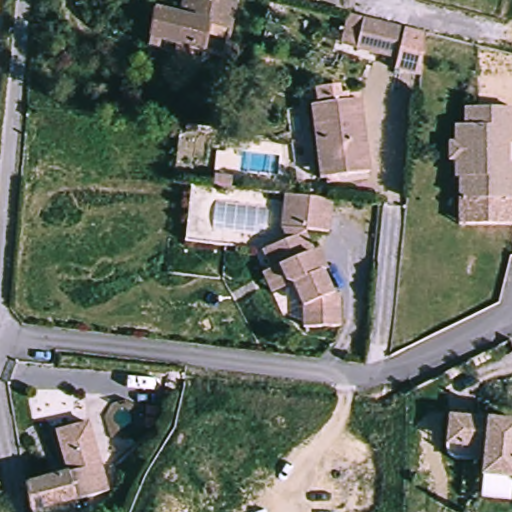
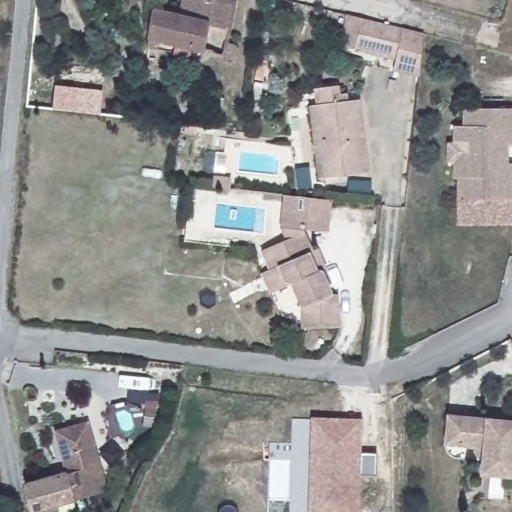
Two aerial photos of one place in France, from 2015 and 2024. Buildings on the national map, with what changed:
unchanged [(173,15),(176,0),(221,0),(233,3),(226,32),(203,26),(196,52),(141,39),(148,9),(173,15)]
unchanged [(379,52),(337,42),(322,38),(326,23),(329,6),(392,22),(407,26),(402,69),(386,65),(376,63),(379,52)]
unchanged [(237,62),(230,60),(220,58),(224,39),(234,41),(242,43),(237,62)]
unchanged [(358,99),(364,171),(317,174),(311,103),(358,99)]
unchanged [(457,187),(458,163),(451,163),(452,145),(445,145),(446,131),(453,131),(454,110),(462,110),(463,99),(512,101),(512,152),(510,190),(509,216),(461,213),(455,213),(456,205),(457,187)]
unchanged [(206,185),(207,173),(226,175),(225,186),(206,185)]
unchanged [(261,270),(268,267),(259,248),(285,237),(280,225),(283,192),(330,196),(327,228),(304,226),(304,230),(312,249),(318,246),(324,268),(320,269),(327,293),(334,294),(334,328),(298,327),(298,306),(291,281),(269,291),(261,270)]
unchanged [(508,478),(478,474),(479,463),(450,459),(442,450),(443,444),(447,414),(457,416),(512,423),(512,446),(508,478)]
new [(308,512),(311,417),(361,419),(360,512),(308,512)]
unchanged [(53,509),(53,508),(26,512),(24,503),(19,478),(20,478),(63,471),(59,451),(55,428),(89,422),(101,493),(67,499),(68,506),(53,509)]

